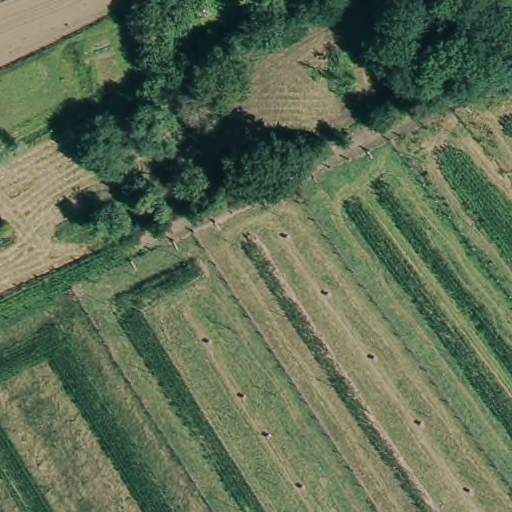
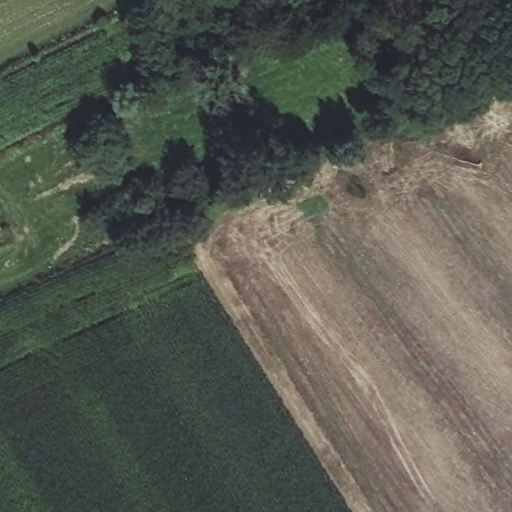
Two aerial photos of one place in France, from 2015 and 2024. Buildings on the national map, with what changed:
[]

